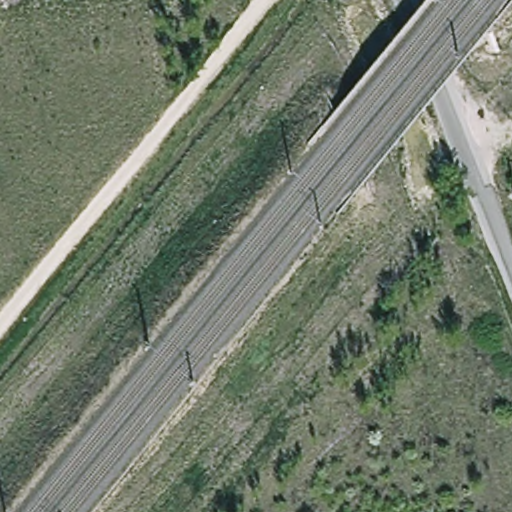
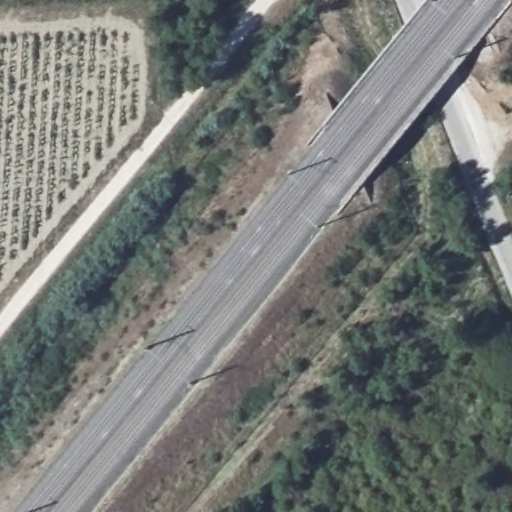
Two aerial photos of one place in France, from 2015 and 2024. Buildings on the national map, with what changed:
[]

